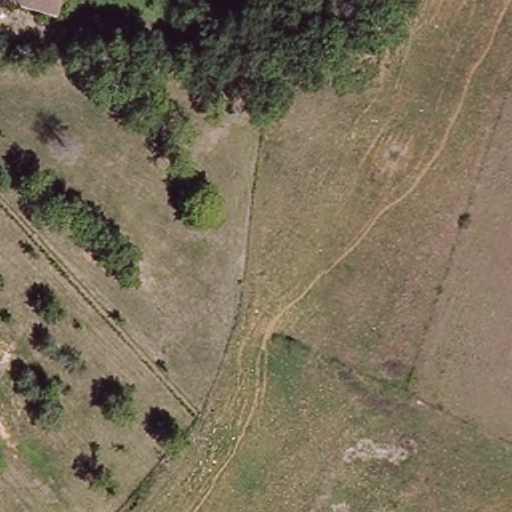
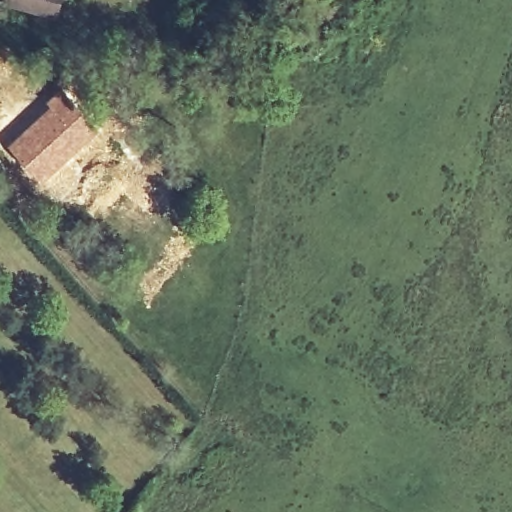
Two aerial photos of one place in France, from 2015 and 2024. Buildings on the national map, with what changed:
unchanged [(61,9),(12,4),(12,0),(62,0),(61,9)]
new [(50,104),(47,100),(64,84),(102,126),(42,180),(9,143),(50,104)]

